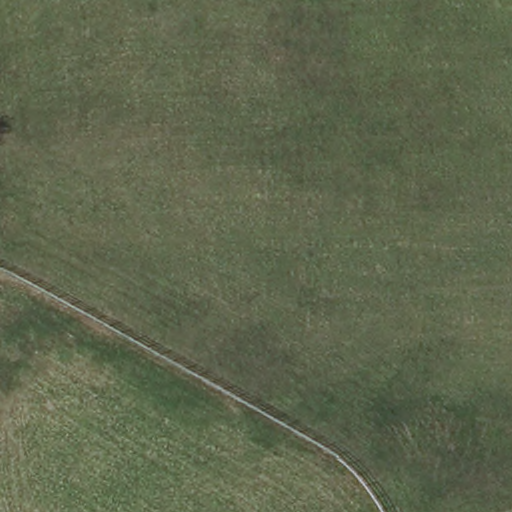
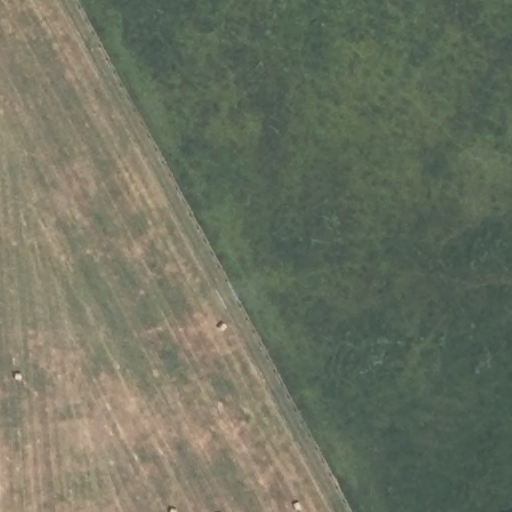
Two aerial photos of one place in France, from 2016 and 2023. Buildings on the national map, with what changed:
[]

